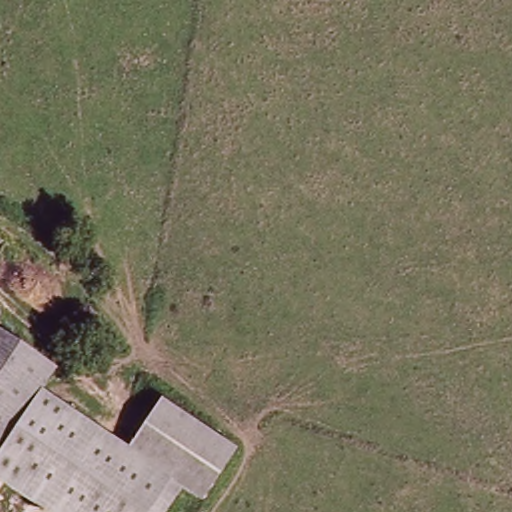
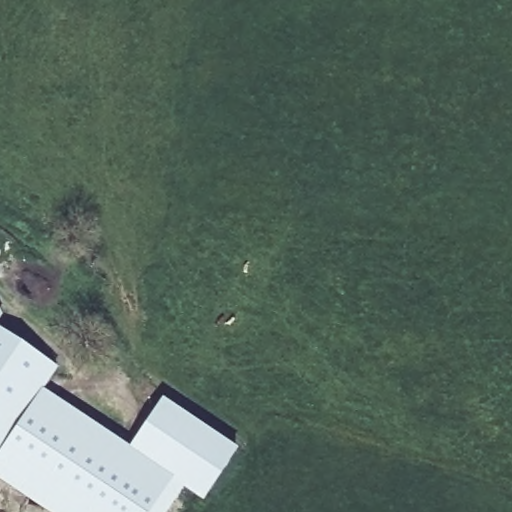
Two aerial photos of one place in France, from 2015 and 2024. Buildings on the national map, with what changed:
unchanged [(0,340),(0,332),(4,335),(0,340)]
unchanged [(57,370),(45,390),(0,456),(0,340),(4,335),(57,370)]
unchanged [(0,477),(0,456),(45,390),(144,455),(184,482),(164,512),(53,512),(0,477)]
unchanged [(178,406),(250,453),(216,503),(184,482),(144,455),(178,406)]

